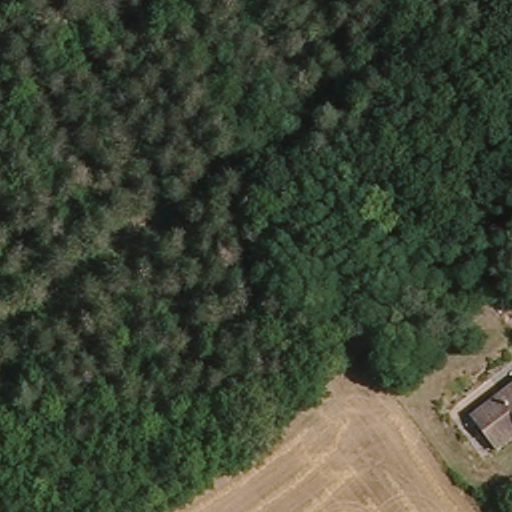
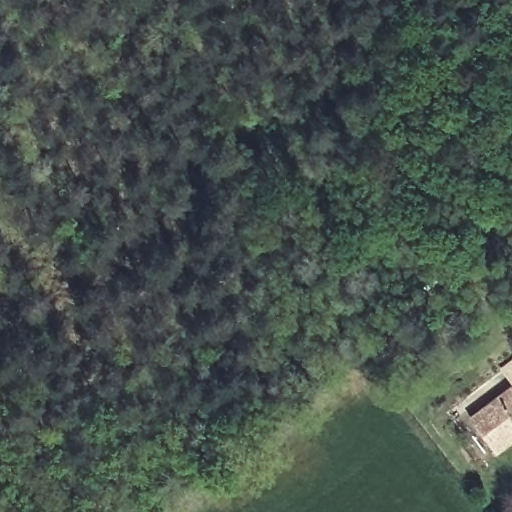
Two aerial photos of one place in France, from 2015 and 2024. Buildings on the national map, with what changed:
unchanged [(499,449),(472,416),(512,386),(512,438),(499,449)]

